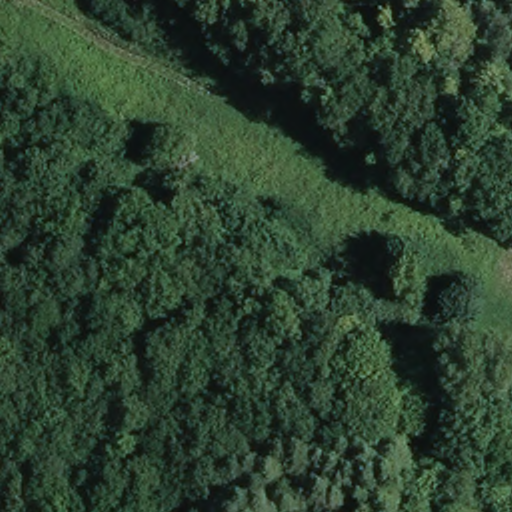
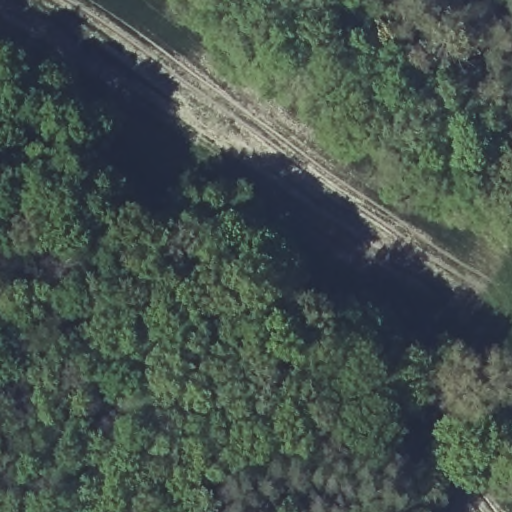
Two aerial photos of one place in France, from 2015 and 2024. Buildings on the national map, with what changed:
[]

